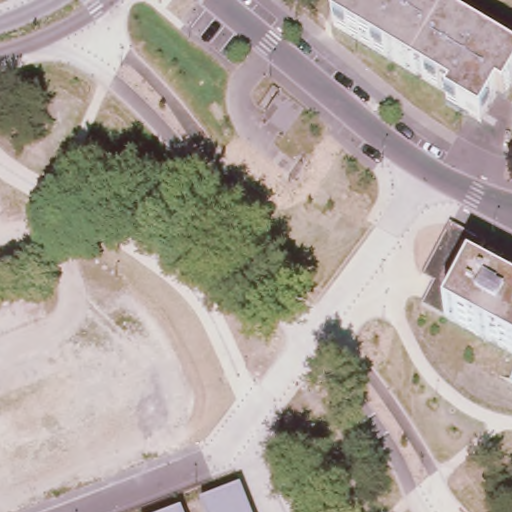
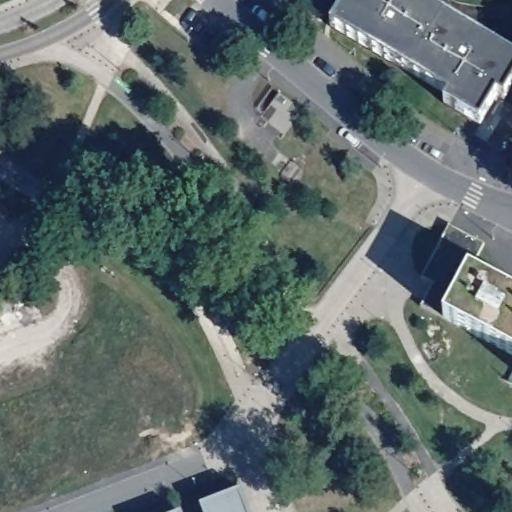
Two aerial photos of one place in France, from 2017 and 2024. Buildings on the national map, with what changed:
unchanged [(498,89),(481,117),(447,96),(451,90),(333,21),(346,0),(425,0),(512,51),(512,80),(505,92),(498,89)]
unchanged [(285,125),(275,117),(271,122),(265,117),(267,113),(264,110),(282,84),(309,104),(287,134),(282,130),(285,125)]
unchanged [(282,174),(282,173),(283,172),(283,170),(278,165),(283,160),(287,164),(288,163),(290,162),(291,162),(292,162),(295,162),(300,155),(302,156),(306,151),(310,155),(305,160),(308,163),(303,167),(304,169),(305,170),(305,171),(305,173),(305,175),(304,177),(303,178),(302,180),(301,180),(301,181),(300,182),(299,183),(297,184),(296,184),(294,184),(292,184),(291,184),(290,184),(288,182),(283,187),(276,180),(283,175),(282,174)]
unchanged [(439,282),(427,276),(455,224),(491,243),(476,271),(512,290),(512,350),(427,305),(439,282)]
unchanged [(206,504),(239,492),(246,512),(209,512),(206,504)]
unchanged [(183,508),(185,512),(171,512),(183,508)]

